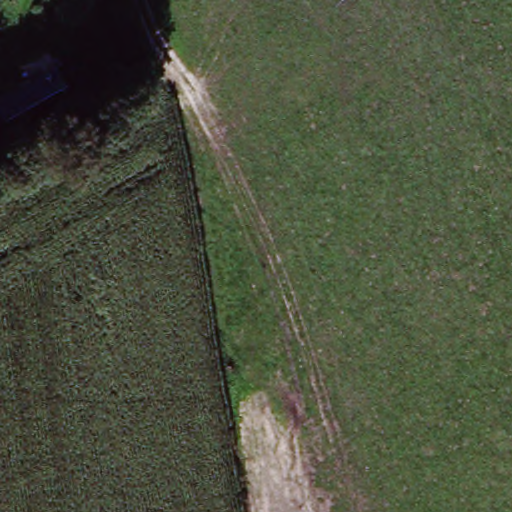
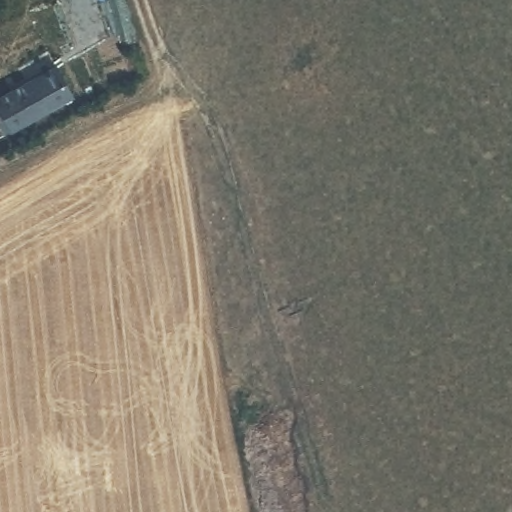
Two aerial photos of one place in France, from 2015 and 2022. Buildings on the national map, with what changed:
unchanged [(37,95),(49,116),(0,144),(0,115),(37,95)]

